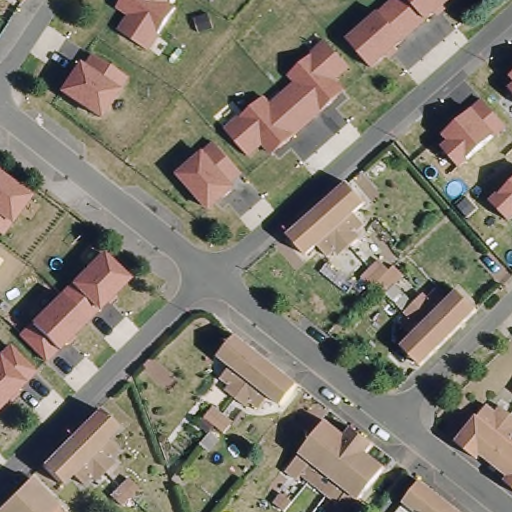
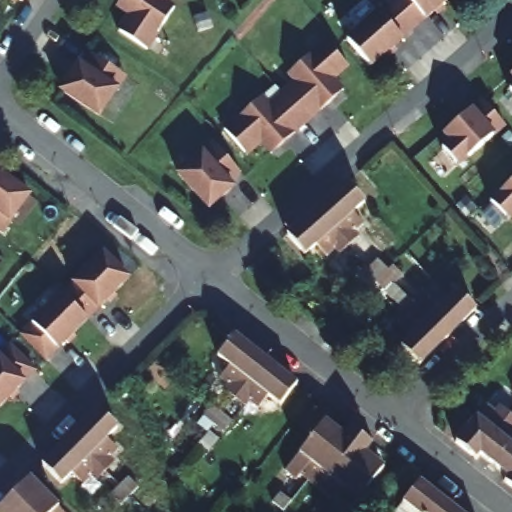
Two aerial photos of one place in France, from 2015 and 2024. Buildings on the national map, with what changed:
unchanged [(112,4),(114,0),(171,0),(169,4),(177,8),(151,52),(113,29),(124,11),(112,4)]
unchanged [(376,65),(346,33),(384,0),(451,0),(376,65)]
unchanged [(334,82),(342,91),(266,156),(258,149),(250,157),(224,126),(264,92),(273,100),(294,81),(284,70),(322,36),(349,66),(334,82)]
unchanged [(99,120),(54,94),(75,60),(85,64),(91,54),(127,75),(99,120)]
unchanged [(512,71),(512,89),(503,80),(512,71)]
unchanged [(459,168),(434,139),(481,99),(503,126),(459,168)]
unchanged [(206,211),(173,171),(210,139),(244,177),(206,211)]
unchanged [(3,234),(0,232),(0,171),(30,191),(3,234)]
unchanged [(512,177),(512,223),(489,201),(512,177)]
unchanged [(354,240),(346,247),(313,207),(319,202),(342,181),(357,200),(357,203),(365,212),(358,219),(366,229),(354,240)]
unchanged [(328,262),(311,242),(300,252),(283,233),(313,207),(346,247),(328,262)]
unchanged [(48,361),(18,332),(95,250),(128,281),(48,361)]
unchanged [(421,293),(430,301),(435,296),(445,304),(460,290),(479,308),(452,335),(451,335),(420,303),(416,298),(421,293)]
unchanged [(420,303),(451,335),(452,335),(423,363),(405,343),(426,323),(409,305),(416,298),(420,303)]
unchanged [(239,377),(218,360),(225,350),(224,348),(238,328),(269,353),(238,392),(232,387),(239,377)]
unchanged [(0,407),(0,346),(4,342),(37,370),(0,407)]
unchanged [(396,350),(414,369),(404,378),(386,359),(396,350)]
unchanged [(300,378),(285,397),(268,383),(259,392),(262,396),(255,406),(238,392),(269,353),(300,378)]
unchanged [(99,405),(118,424),(113,430),(122,440),(106,457),(114,465),(108,471),(70,434),(99,405)]
unchanged [(450,435),(474,407),(484,415),(480,421),(499,437),(484,455),(478,461),(450,435)]
unchanged [(300,466),(294,461),(283,471),(272,461),(291,437),(303,446),(325,419),(343,434),(308,477),(301,486),(297,484),(289,493),(282,487),(300,466)]
unchanged [(512,421),(512,479),(484,455),(499,437),(512,421)]
unchanged [(323,503),(314,496),(321,487),(308,477),(343,434),(349,426),(369,442),(363,450),(323,503)]
unchanged [(102,478),(93,469),(77,485),(67,475),(61,481),(42,462),(59,444),(70,434),(108,471),(102,478)]
unchanged [(348,508),(352,512),(351,512),(333,512),(323,503),(363,450),(383,465),(348,508)]
unchanged [(402,495),(417,474),(448,498),(437,512),(397,512),(407,499),(402,495)]
unchanged [(28,475),(57,505),(65,497),(76,508),(71,512),(30,512),(11,492),(28,475)]
unchanged [(508,485),(512,480),(512,488),(508,485)]
unchanged [(11,492),(30,512),(0,512),(0,503),(11,492)]
unchanged [(104,511),(103,512),(84,512),(77,505),(87,494),(104,511)]
unchanged [(465,512),(437,512),(448,498),(462,510),(465,512)]

